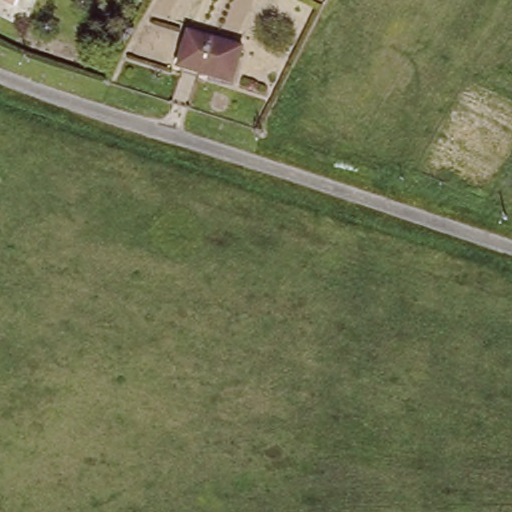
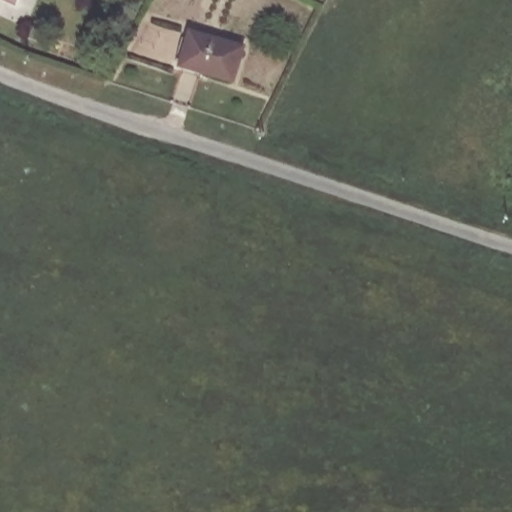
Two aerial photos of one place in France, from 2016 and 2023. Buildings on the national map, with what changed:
unchanged [(0,4),(0,0),(16,0),(11,9),(0,4)]
unchanged [(190,30),(245,45),(236,80),(180,66),(190,30)]

